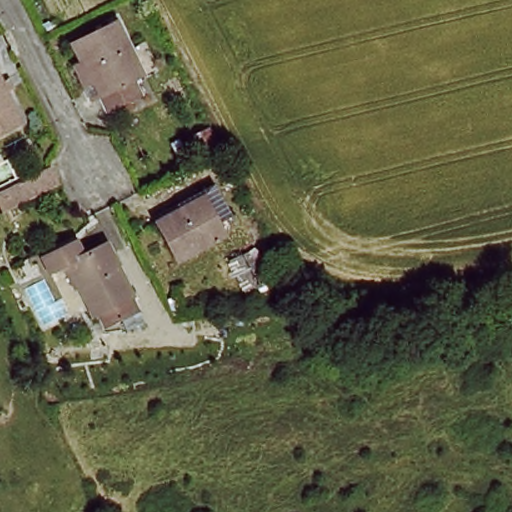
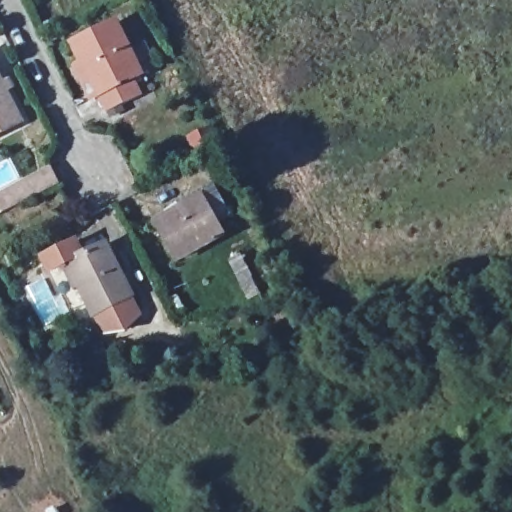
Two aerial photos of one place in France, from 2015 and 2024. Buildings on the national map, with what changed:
unchanged [(149,85),(104,106),(72,40),(117,19),(149,85)]
unchanged [(0,132),(0,83),(22,121),(0,132)]
unchanged [(0,205),(0,186),(52,160),(59,175),(0,205)]
unchanged [(162,221),(204,200),(222,235),(179,255),(162,221)]
unchanged [(108,323),(100,307),(94,310),(69,260),(51,267),(43,254),(77,237),(85,250),(105,240),(127,282),(133,290),(143,305),(108,323)]

